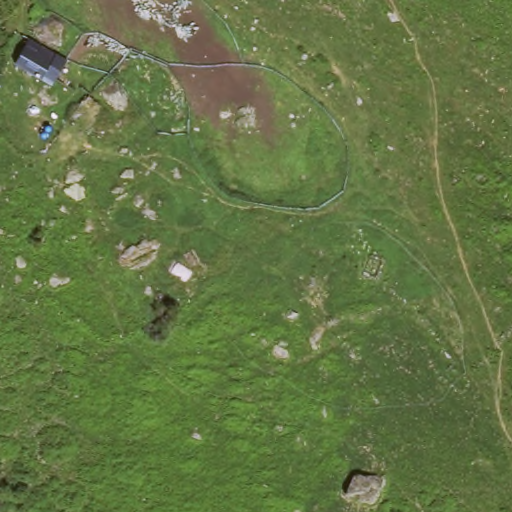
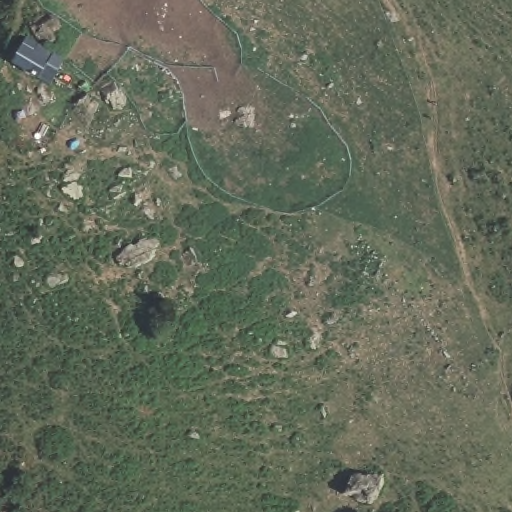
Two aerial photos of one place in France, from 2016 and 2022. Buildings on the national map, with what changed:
unchanged [(42,44),(61,52),(51,75),(21,60),(31,38),(42,44)]

